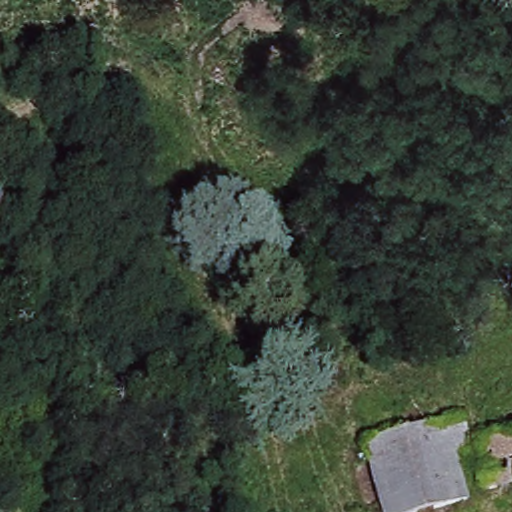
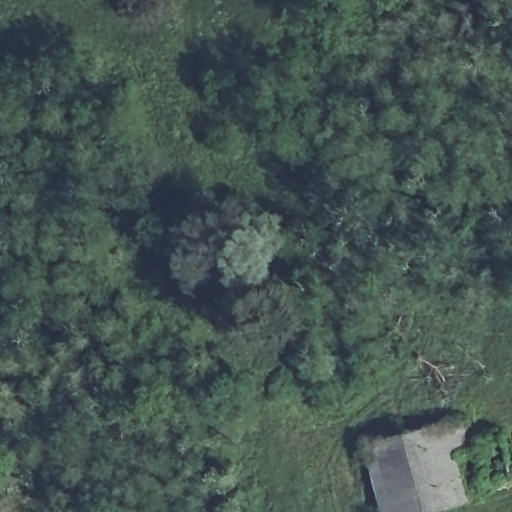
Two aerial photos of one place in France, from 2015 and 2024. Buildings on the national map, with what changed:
unchanged [(448,455),(462,500),(419,512),(379,512),(359,443),(456,416),(467,450),(448,455)]
unchanged [(512,431),(512,485),(507,486),(497,434),(512,431)]
unchanged [(507,486),(478,491),(475,477),(478,477),(470,440),(497,434),(507,486)]

